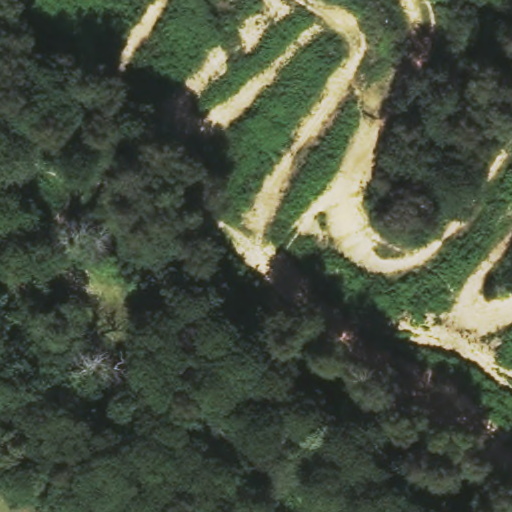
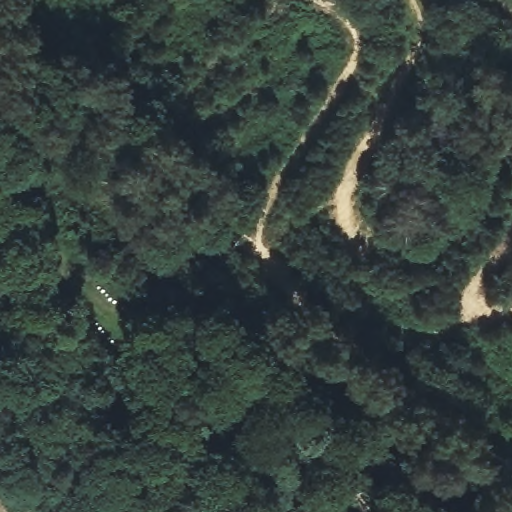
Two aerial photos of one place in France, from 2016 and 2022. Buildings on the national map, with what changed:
unchanged [(10,127),(20,115),(55,144),(45,155),(10,127)]

